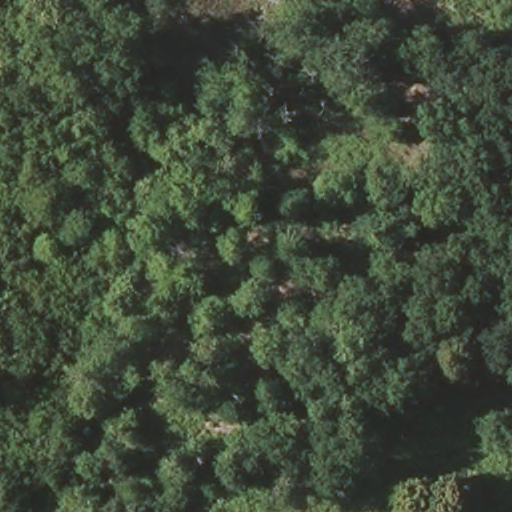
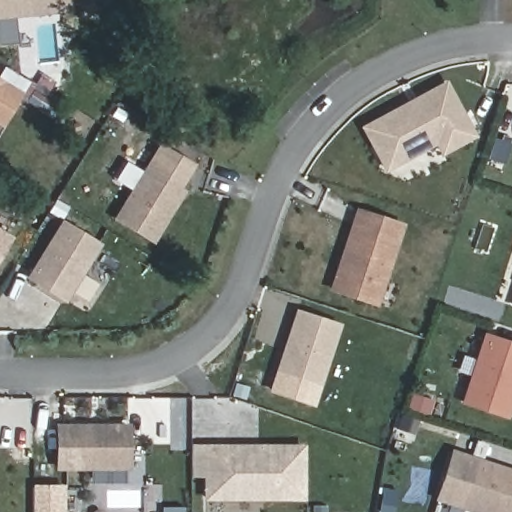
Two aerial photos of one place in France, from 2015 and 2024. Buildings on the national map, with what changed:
new [(72,11),(0,19),(0,0),(71,0),(72,11)]
new [(2,127),(0,126),(0,78),(24,92),(2,127)]
new [(367,144),(359,127),(405,102),(412,99),(440,83),(468,135),(437,152),(431,140),(392,162),(381,168),(367,144)]
new [(156,243),(114,219),(145,165),(187,190),(156,243)]
new [(378,306),(328,290),(356,207),(406,222),(378,306)]
new [(66,302),(26,277),(62,219),(102,244),(66,302)]
new [(0,259),(0,228),(14,236),(0,259)]
new [(512,306),(511,306),(512,301),(512,306)]
new [(293,311),(334,325),(314,384),(274,370),(293,311)]
new [(462,401),(486,335),(512,343),(512,398),(507,415),(462,401)]
new [(130,470),(57,470),(56,423),(131,423),(130,470)]
new [(191,475),(191,446),(206,447),(229,447),(258,447),(302,447),(302,497),(206,497),(206,475),(191,475)]
new [(451,447),(512,468),(512,512),(471,512),(435,500),(451,447)]
new [(65,484),(65,512),(32,512),(32,486),(65,484)]

